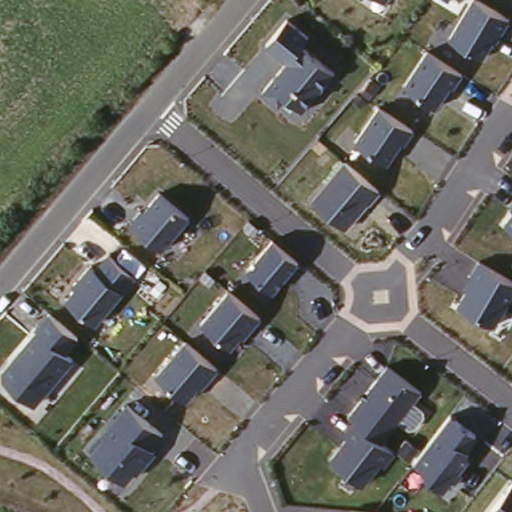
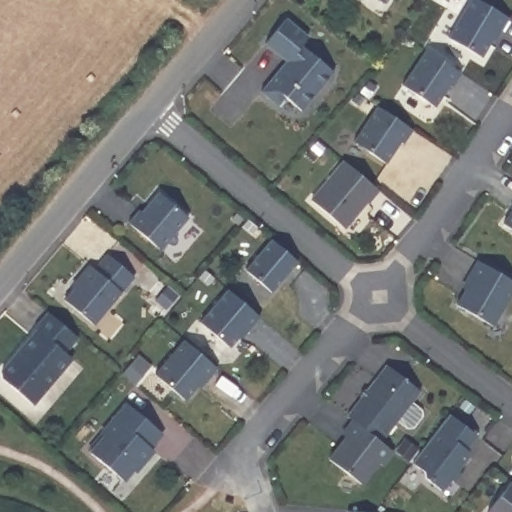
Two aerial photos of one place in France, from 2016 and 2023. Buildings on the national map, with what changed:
unchanged [(375,0),(386,0),(382,5),(375,0)]
unchanged [(483,60),(446,37),(471,0),(481,0),(511,18),(483,60)]
unchanged [(286,59),(264,41),(284,17),(309,36),(302,44),(333,71),(304,109),(291,98),(282,105),(262,90),(286,59)]
unchanged [(463,72),(438,107),(402,85),(426,49),(463,72)]
unchanged [(416,129),(388,165),(353,140),(378,105),(416,129)]
unchanged [(378,190),(346,227),(308,196),(343,160),(378,190)]
unchanged [(159,192),(185,217),(161,247),(129,225),(159,192)]
unchanged [(501,221),(512,208),(512,229),(501,221)]
unchanged [(300,262),(273,291),(244,268),(271,238),(300,262)]
unchanged [(73,290),(71,285),(88,267),(94,270),(108,256),(134,277),(95,325),(66,298),(73,290)]
unchanged [(512,278),(512,299),(495,327),(453,303),(479,260),(512,278)]
unchanged [(261,317),(234,348),(200,320),(227,289),(261,317)]
unchanged [(73,359),(36,403),(0,373),(0,372),(40,326),(73,359)]
unchanged [(216,368),(184,401),(154,373),(184,340),(216,368)]
unchanged [(423,388),(383,441),(392,449),(361,485),(328,460),(348,434),(340,429),(353,414),(347,411),(386,362),(423,388)]
unchanged [(104,434),(101,430),(124,402),(162,435),(152,443),(155,447),(140,468),(137,467),(124,480),(91,451),(104,434)]
unchanged [(481,434),(469,451),(472,454),(440,493),(426,482),(426,471),(413,460),(450,413),(481,434)]
unchanged [(512,481),(512,512),(487,512),(512,481)]
unchanged [(344,510),(367,512),(345,512),(344,510)]

